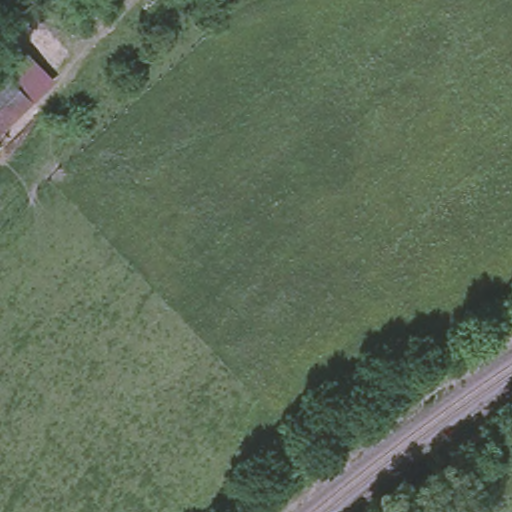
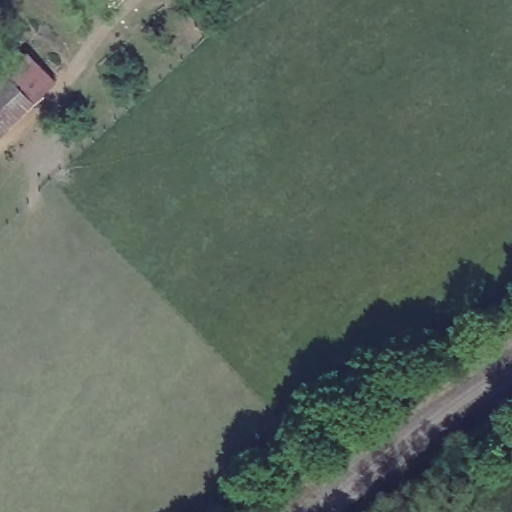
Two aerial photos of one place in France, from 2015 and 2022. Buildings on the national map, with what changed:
unchanged [(0,134),(0,77),(28,50),(55,81),(0,134)]

